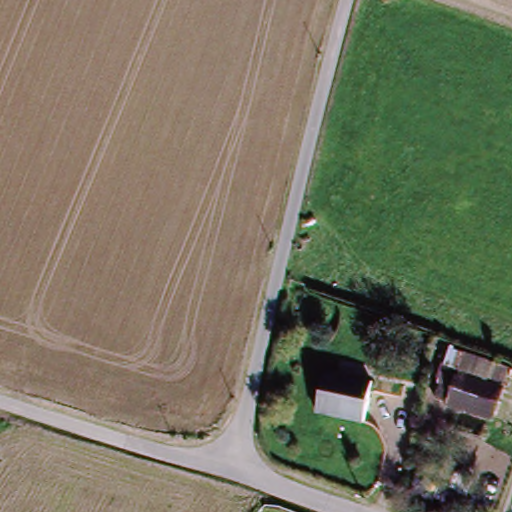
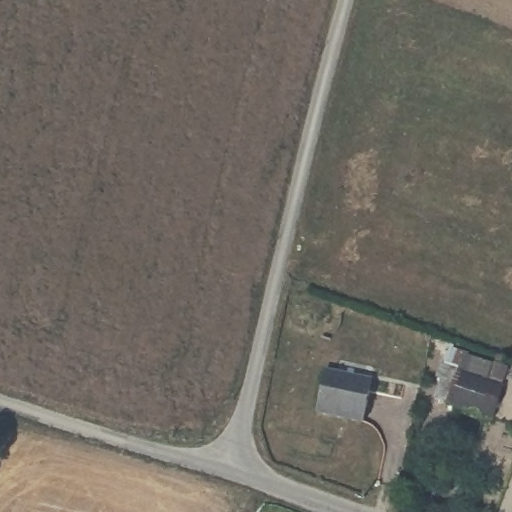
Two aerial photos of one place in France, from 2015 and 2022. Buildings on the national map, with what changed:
unchanged [(456,367),(505,377),(495,419),(448,408),(456,367)]
unchanged [(327,375),(374,385),(365,427),(318,416),(327,375)]

